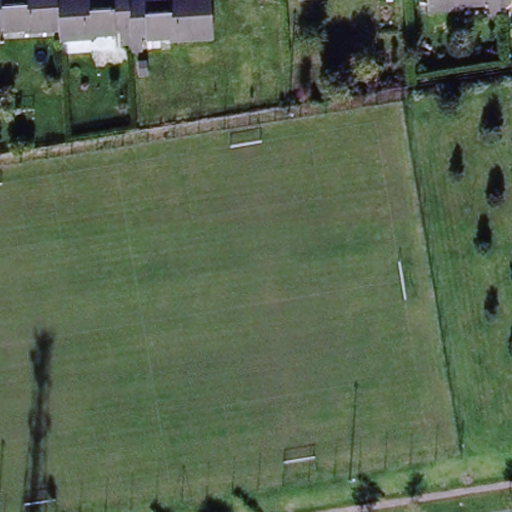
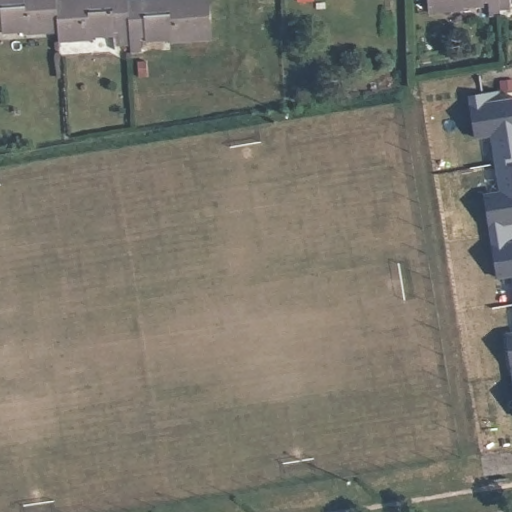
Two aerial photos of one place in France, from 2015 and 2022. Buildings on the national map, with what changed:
unchanged [(31,42),(30,36),(10,37),(9,30),(0,31),(0,0),(15,0),(21,0),(57,0),(59,41),(31,42)]
unchanged [(83,4),(99,3),(100,0),(134,0),(135,29),(115,30),(115,35),(96,36),(94,42),(59,44),(59,41),(57,0),(83,0),(83,4)]
unchanged [(166,4),(182,4),(182,0),(212,0),(212,43),(177,45),(177,40),(157,40),(155,35),(136,36),(135,29),(134,0),(166,0),(166,4)]
unchanged [(486,1),(464,4),(463,11),(434,15),(433,0),(486,0),(486,1)]
new [(500,93),(501,104),(512,102),(512,278),(500,280),(485,199),(502,195),(493,138),(475,141),(469,98),(500,93)]
new [(507,338),(512,337),(512,371),(507,338)]

